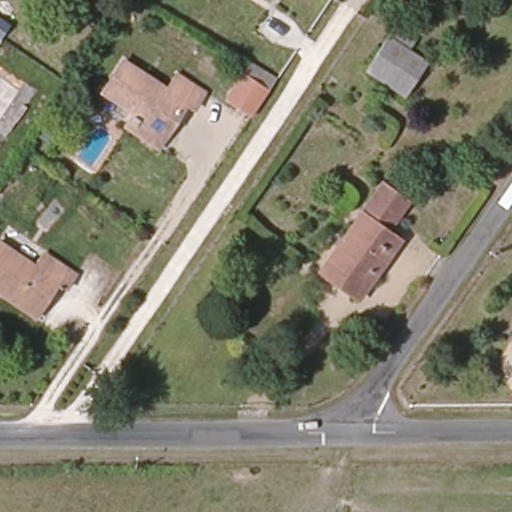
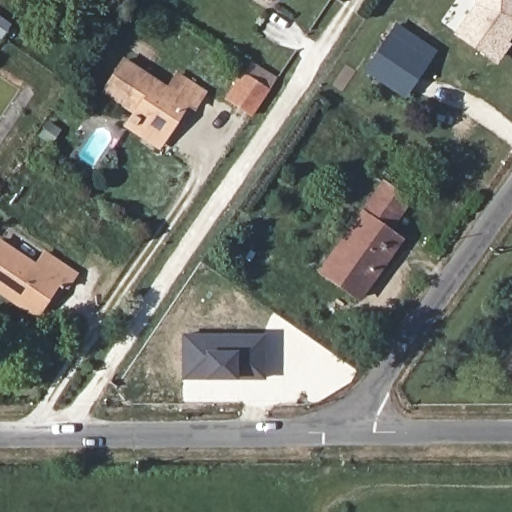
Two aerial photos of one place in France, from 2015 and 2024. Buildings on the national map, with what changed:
unchanged [(270,1),(269,0),(275,0),(273,2),(270,1)]
new [(477,0),(512,0),(512,33),(492,62),(456,36),(476,7),(477,0)]
unchanged [(407,96),(366,69),(393,20),(420,32),(412,47),(432,58),(407,96)]
unchanged [(0,39),(0,32),(4,34),(0,39)]
unchanged [(124,130),(130,122),(132,116),(100,94),(122,57),(170,87),(177,76),(205,94),(195,109),(185,103),(161,141),(156,150),(124,130)]
unchanged [(246,72),(271,88),(255,113),(230,97),(246,72)]
unchanged [(322,268),(382,180),(408,197),(387,227),(405,239),(362,295),(322,268)]
unchanged [(0,287),(0,239),(2,237),(39,262),(46,249),(79,271),(69,286),(59,279),(42,307),(38,313),(7,292),(0,287)]
new [(238,380),(202,380),(180,379),(181,333),(263,333),(265,380),(238,380)]

